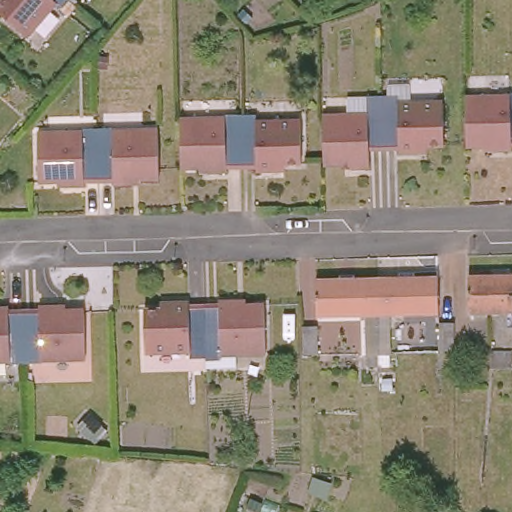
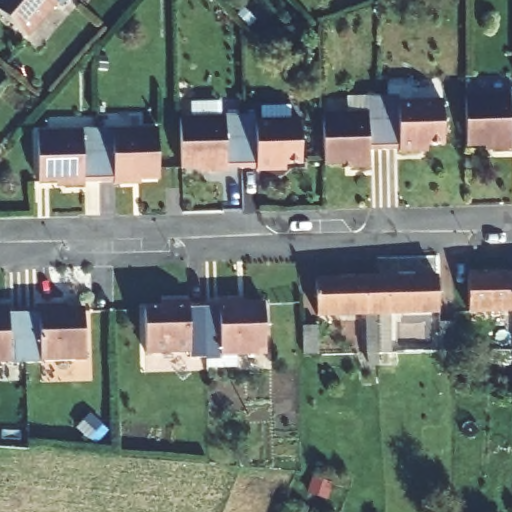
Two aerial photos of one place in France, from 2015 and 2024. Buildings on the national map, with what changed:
unchanged [(60,4),(55,0),(25,35),(0,12),(0,0),(63,0),(60,4)]
unchanged [(322,119),(366,118),(365,99),(381,98),(382,148),(366,148),(367,170),(350,171),(350,166),(323,167),(322,119)]
unchanged [(381,98),(397,98),(397,105),(442,105),(443,146),(416,147),(416,154),(397,155),(397,147),(382,148),(381,98)]
unchanged [(512,99),(512,147),(510,147),(510,152),(490,152),(490,147),(465,148),(465,99),(512,99)]
unchanged [(224,167),(224,173),(206,173),(206,167),(181,168),(180,123),(221,122),(222,118),(238,117),(239,167),(224,167)]
unchanged [(238,117),(253,117),(253,123),(295,123),(296,166),(270,166),(270,172),(255,173),(255,167),(239,167),(238,117)]
unchanged [(96,134),(96,129),(112,128),(112,140),(155,139),(156,180),(132,180),(132,187),(114,188),(113,181),(98,182),(96,134)]
unchanged [(83,182),(83,188),(66,189),(65,183),(40,183),(38,136),(81,135),(81,129),(96,129),(96,134),(98,182),(83,182)]
unchanged [(508,309),(467,310),(466,274),(512,273),(512,321),(509,321),(508,309)]
unchanged [(438,275),(440,311),(390,312),(391,352),(381,352),(380,319),(379,313),(377,276),(438,275)]
unchanged [(379,313),(380,319),(381,352),(372,353),(370,325),(370,313),(320,314),(317,278),(377,276),(379,313)]
unchanged [(220,308),(221,303),(236,302),(236,307),(260,306),(261,347),(235,348),(236,371),(206,371),(206,361),(205,308),(220,308)]
unchanged [(185,362),(185,354),(144,355),(142,310),(165,310),(165,304),(181,303),(182,309),(205,308),(206,361),(185,362)]
unchanged [(42,313),(42,308),(57,307),(57,313),(81,312),(83,352),(43,354),(43,365),(26,366),(25,313),(42,313)]
unchanged [(3,309),(3,314),(25,313),(26,366),(5,366),(5,359),(0,359),(0,309),(3,309)]
unchanged [(455,349),(440,348),(440,321),(455,321),(455,349)]
unchanged [(316,326),(313,355),(300,355),(300,326),(316,326)]

